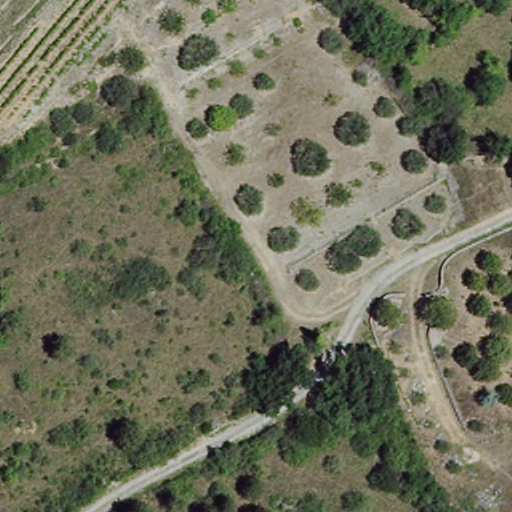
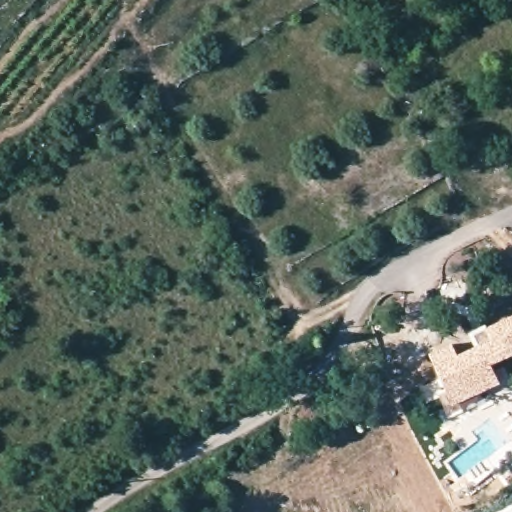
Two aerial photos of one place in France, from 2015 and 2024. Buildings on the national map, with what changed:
new [(459,357),(476,348),(470,335),(485,327),(486,330),(512,317),(512,341),(488,355),(497,372),(451,396),(431,357),(453,345),(459,357)]

